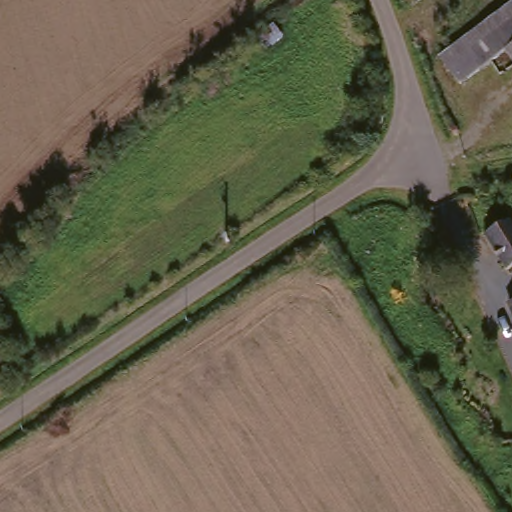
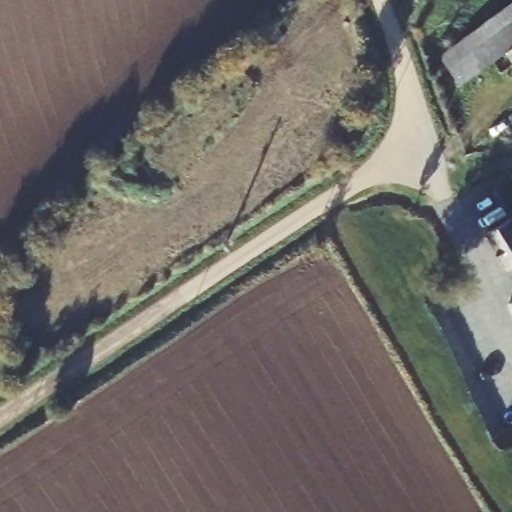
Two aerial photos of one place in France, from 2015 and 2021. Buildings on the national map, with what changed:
unchanged [(501,45),(453,80),(434,55),(512,0),(512,60),(501,45)]
unchanged [(507,266),(483,233),(501,222),(504,220),(512,231),(512,263),(507,266)]
unchanged [(511,305),(512,305),(512,306),(511,305)]

